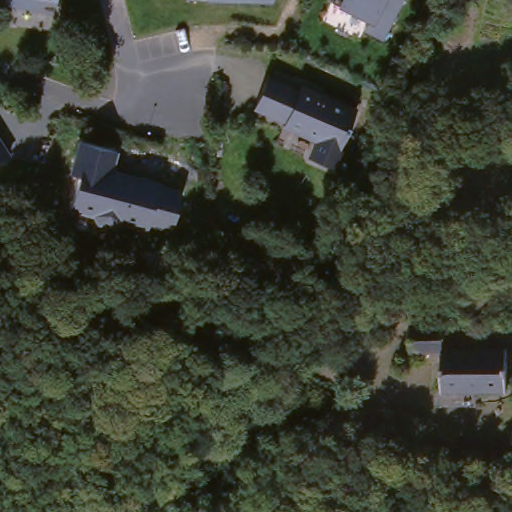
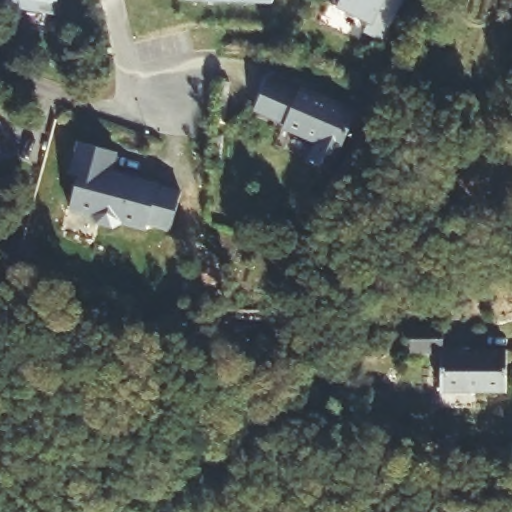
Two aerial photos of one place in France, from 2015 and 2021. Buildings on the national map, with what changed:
unchanged [(2,9),(3,0),(59,0),(56,19),(2,9)]
unchanged [(182,2),(182,0),(272,0),(270,7),(182,2)]
unchanged [(364,34),(367,22),(335,11),(340,0),(405,0),(385,42),(364,34)]
unchanged [(356,123),(333,176),(312,167),(319,150),(287,136),(288,133),(259,120),(272,90),(302,103),(303,100),(356,123)]
unchanged [(169,226),(146,221),(144,228),(71,213),(77,177),(67,175),(76,142),(114,151),(109,174),(178,188),(169,226)]
unchanged [(15,168),(0,178),(0,145),(15,168)]
unchanged [(441,355),(502,357),(500,403),(442,402),(441,355)]

